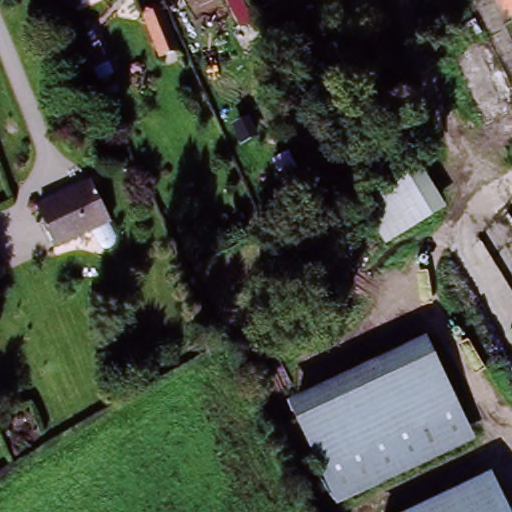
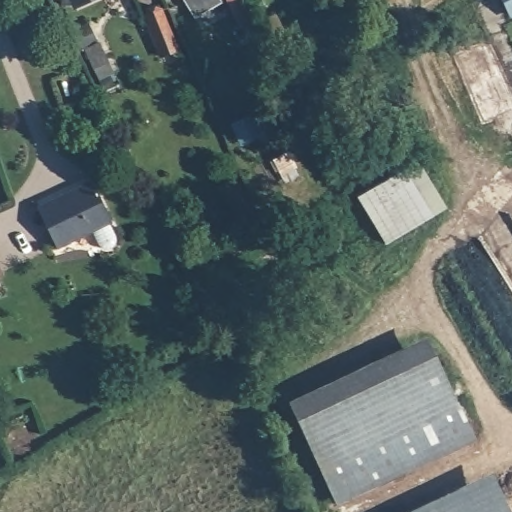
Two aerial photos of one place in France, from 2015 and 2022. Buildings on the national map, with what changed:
unchanged [(245,0),(253,18),(243,22),(232,0),(245,0)]
unchanged [(506,0),(512,0),(512,8),(509,9),(506,0)]
unchanged [(164,9),(182,49),(178,51),(167,57),(148,18),(159,12),(164,9)]
unchanged [(273,13),(282,34),(265,43),(255,21),(273,13)]
unchanged [(89,59),(81,43),(92,37),(100,54),(89,59)]
unchanged [(274,149),(286,143),(292,156),(279,162),(274,149)]
unchanged [(358,194),(403,170),(428,218),(383,240),(358,194)]
unchanged [(104,217),(50,240),(34,202),(88,179),(104,217)]
unchanged [(1,268),(0,268),(0,265),(1,268)]
unchanged [(426,337),(462,414),(326,479),(289,401),(426,337)]
unchanged [(512,512),(414,512),(494,473),(512,509),(512,512)]

